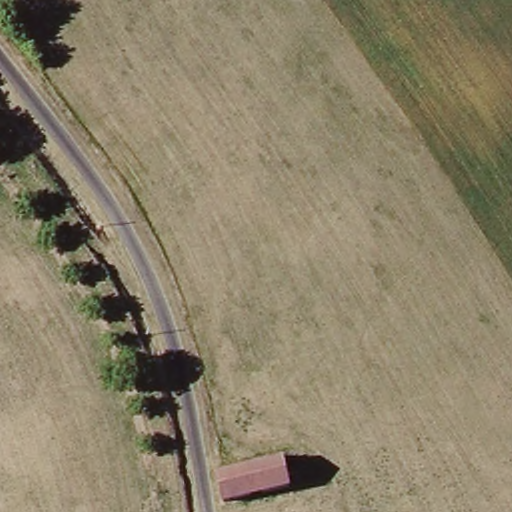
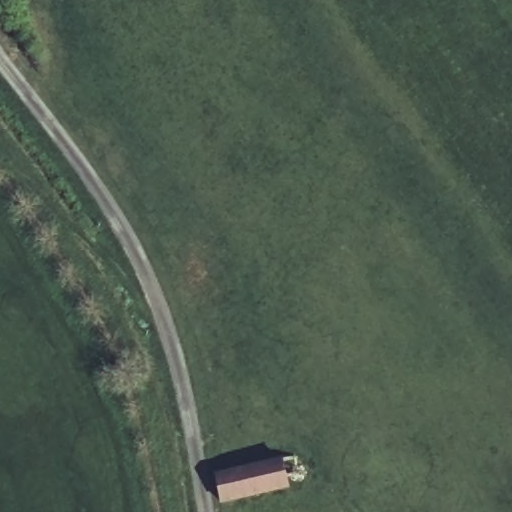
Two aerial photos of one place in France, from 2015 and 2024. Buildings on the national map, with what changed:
unchanged [(222,505),(217,474),(281,465),(286,494),(222,505)]

